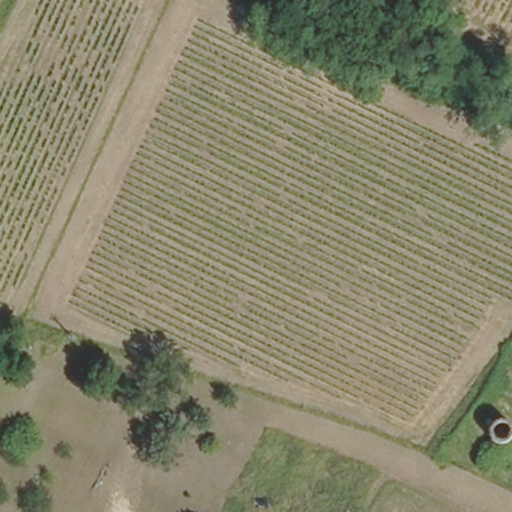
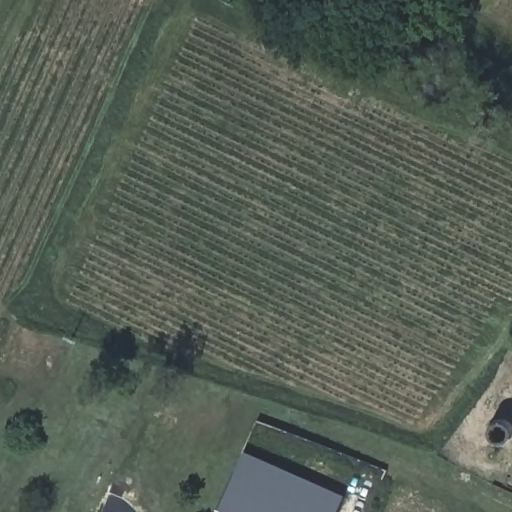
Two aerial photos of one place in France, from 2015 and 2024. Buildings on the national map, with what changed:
unchanged [(503,420),(512,421),(512,443),(507,445),(497,445),(491,436),(491,429),(494,423),(503,420)]
new [(244,450),(344,495),(336,512),(219,512),(244,450)]

